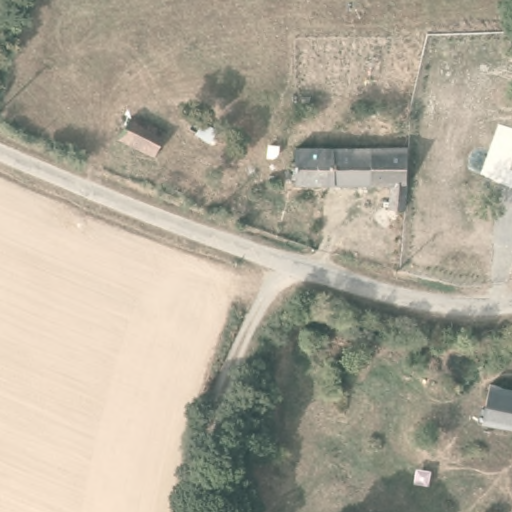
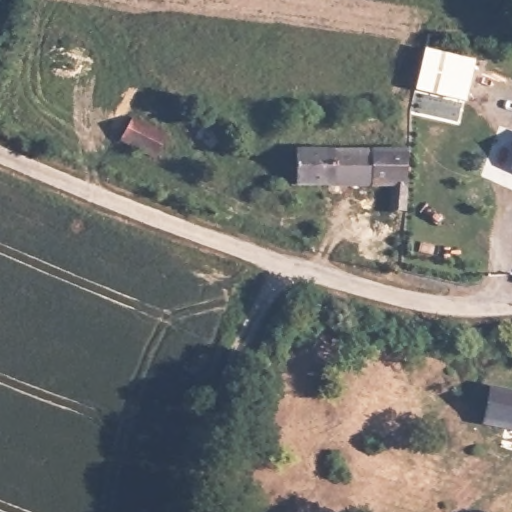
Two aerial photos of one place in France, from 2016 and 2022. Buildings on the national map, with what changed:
new [(424,50),(474,62),(464,103),(415,91),(424,50)]
unchanged [(127,112),(168,130),(159,151),(117,136),(127,112)]
unchanged [(374,213),(376,187),(289,180),(293,139),(396,141),(393,213),(374,213)]
unchanged [(507,164),(512,154),(512,166),(507,164)]
unchanged [(488,377),(512,382),(512,429),(479,423),(488,377)]

